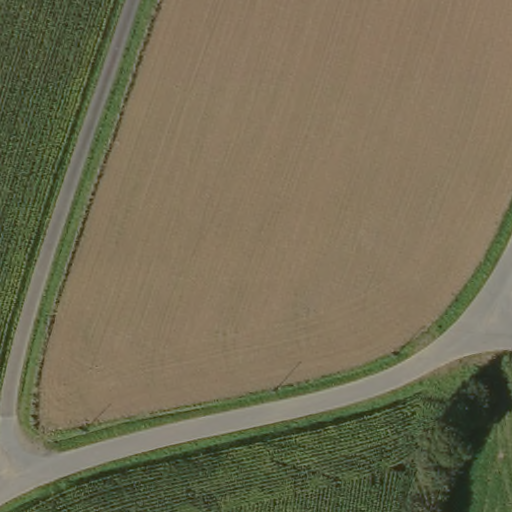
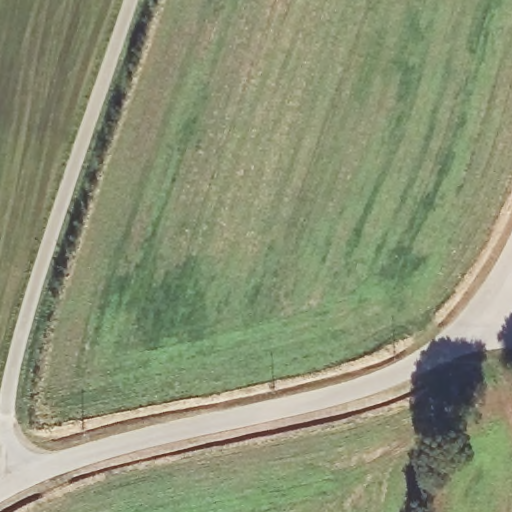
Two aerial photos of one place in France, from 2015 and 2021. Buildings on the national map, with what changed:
[]

